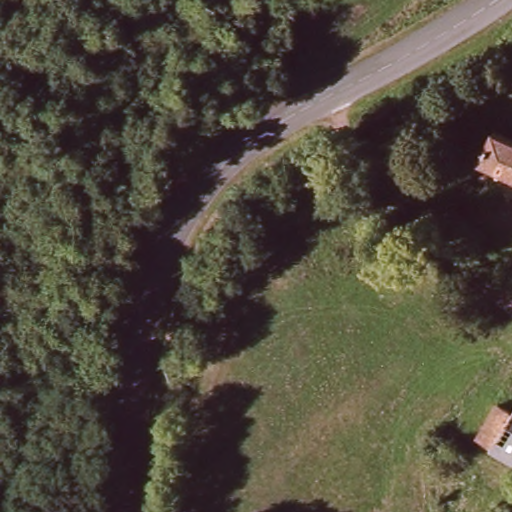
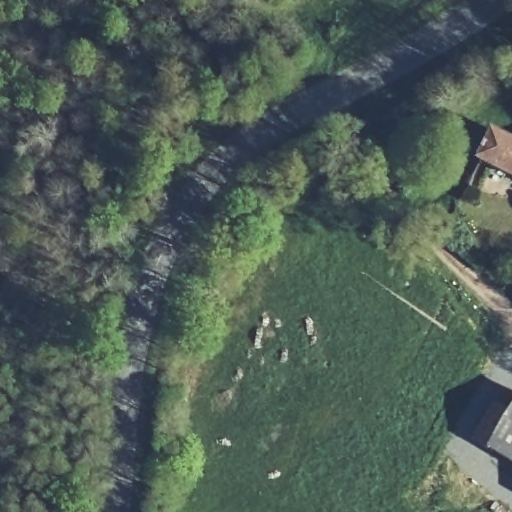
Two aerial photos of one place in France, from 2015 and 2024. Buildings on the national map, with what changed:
unchanged [(512,138),(512,175),(475,157),(490,127),(512,138)]
unchanged [(489,447),(475,438),(485,423),(495,407),(510,416),(512,412),(512,461),(489,447)]

